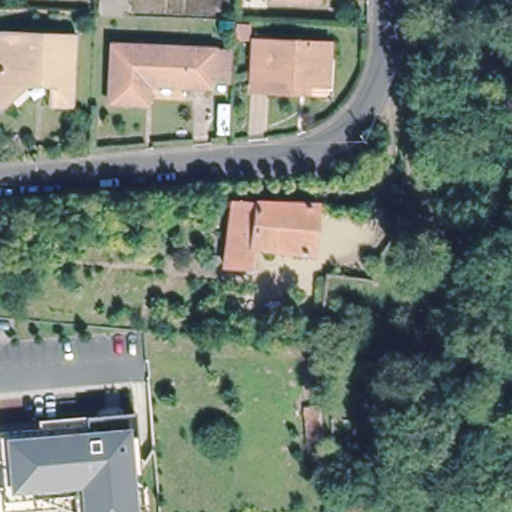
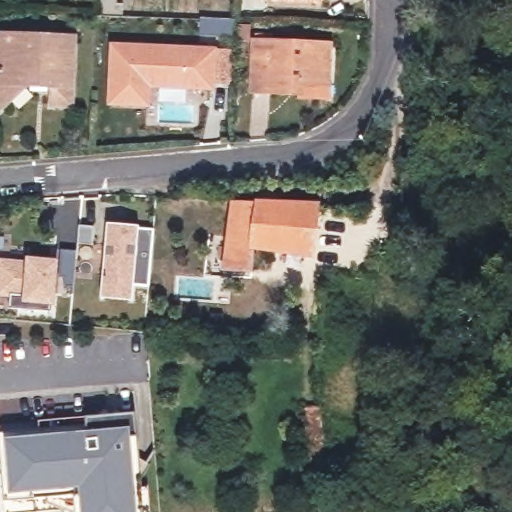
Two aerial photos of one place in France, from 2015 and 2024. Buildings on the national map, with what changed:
unchanged [(47,103),(48,79),(27,79),(20,86),(23,89),(15,99),(12,96),(3,106),(0,103),(0,35),(1,34),(73,36),(71,103),(47,103)]
unchanged [(294,92),(294,78),(285,78),(284,92),(244,90),(246,39),(319,41),(317,93),(294,92)]
unchanged [(109,103),(112,49),(211,53),(209,89),(147,86),(146,105),(109,103)]
unchanged [(246,252),(245,269),(220,268),(223,198),(281,199),(309,200),(307,254),(246,252)]
new [(107,233),(108,225),(140,228),(140,230),(154,231),(150,288),(135,286),(134,297),(133,303),(102,300),(102,294),(107,233)]
new [(26,257),(59,259),(55,305),(51,305),(51,310),(9,307),(10,297),(0,296),(0,258),(26,262),(26,257)]
unchanged [(324,463),(311,466),(302,407),(315,404),(324,463)]
unchanged [(35,497),(4,500),(3,489),(0,454),(0,431),(39,428),(39,419),(135,411),(136,420),(144,512),(74,512),(46,501),(48,496),(35,497)]
unchanged [(380,507),(380,512),(336,512),(336,509),(380,507)]

